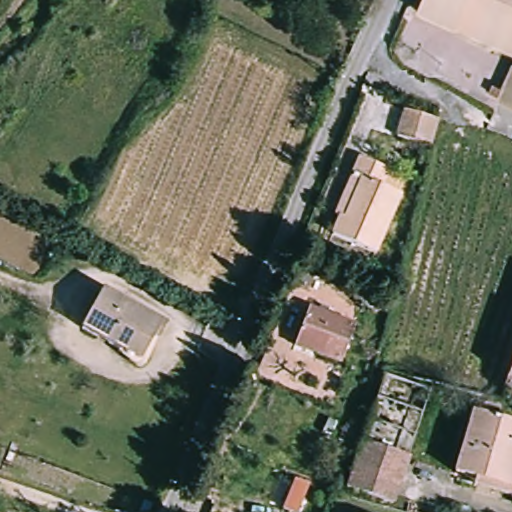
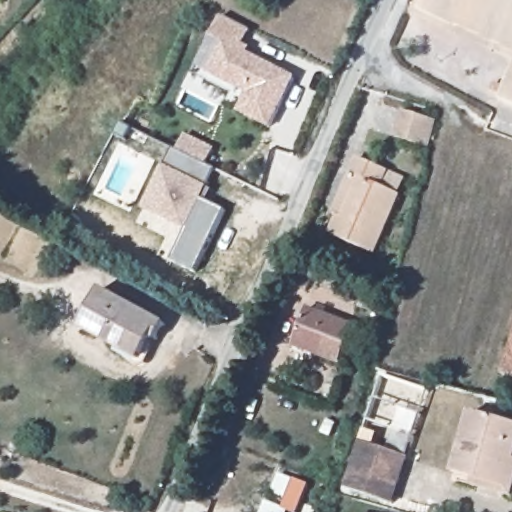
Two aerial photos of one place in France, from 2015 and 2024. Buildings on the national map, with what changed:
unchanged [(418,7),(421,0),(512,0),(512,50),(459,26),(418,7)]
unchanged [(199,11),(194,24),(184,20),(189,6),(199,11)]
new [(250,33),(245,46),(252,50),(250,56),(296,77),(271,130),(238,112),(248,96),(209,75),(223,45),(214,38),(221,19),(250,33)]
unchanged [(512,58),(512,104),(494,96),(512,58)]
unchanged [(438,124),(432,148),(401,138),(410,114),(438,124)]
new [(173,150),(177,152),(185,136),(214,150),(206,166),(215,170),(208,188),(202,201),(225,212),(197,273),(173,262),(188,232),(143,211),(164,167),(173,150)]
unchanged [(390,163),(383,183),(402,190),(377,251),(330,233),(337,215),(332,213),(356,151),(390,163)]
unchanged [(162,325),(137,366),(79,331),(104,292),(162,325)]
unchanged [(355,319),(337,361),(292,345),(312,302),(355,319)]
unchanged [(512,379),(505,377),(512,347),(512,379)]
unchanged [(475,476),(452,468),(470,407),(512,420),(512,494),(472,483),(475,476)]
unchanged [(362,441),(410,456),(395,504),(346,488),(362,441)]
unchanged [(296,496),(290,512),(275,512),(282,491),(296,496)]

